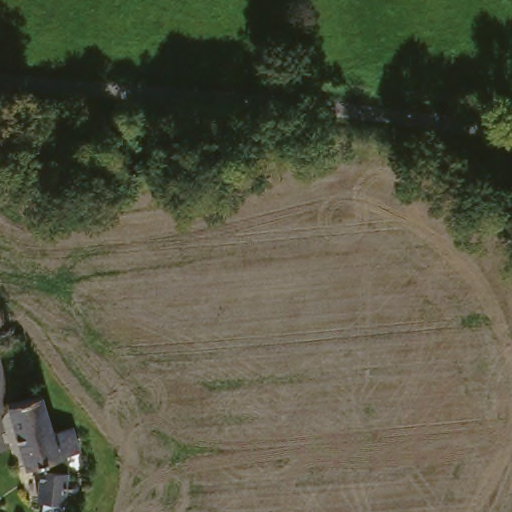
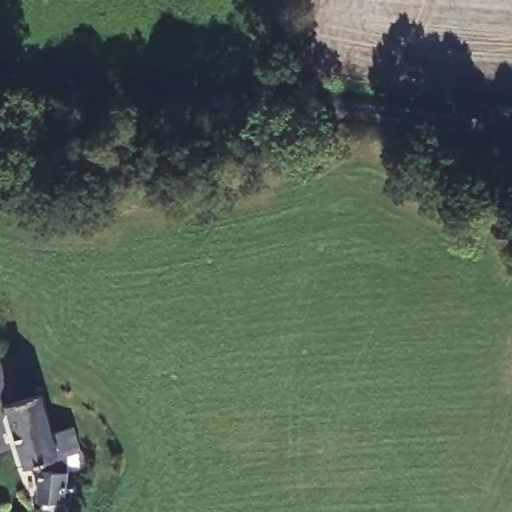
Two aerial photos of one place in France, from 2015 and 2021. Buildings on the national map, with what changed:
unchanged [(66,466),(63,476),(61,485),(69,487),(71,491),(70,495),(70,499),(67,500),(61,500),(60,506),(58,512),(39,512),(41,504),(31,502),(35,468),(32,465),(23,468),(9,400),(44,392),(52,442),(74,438),(79,463),(66,466)]

